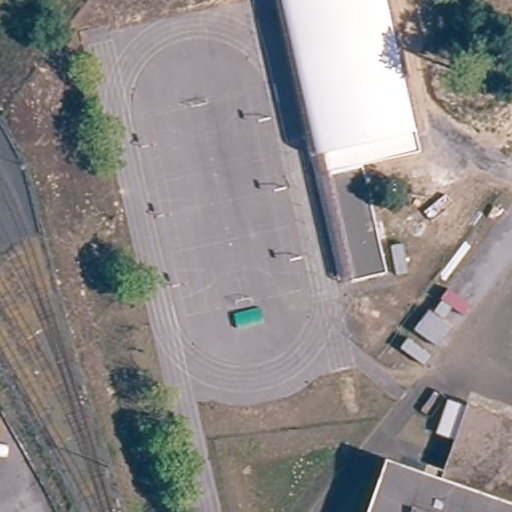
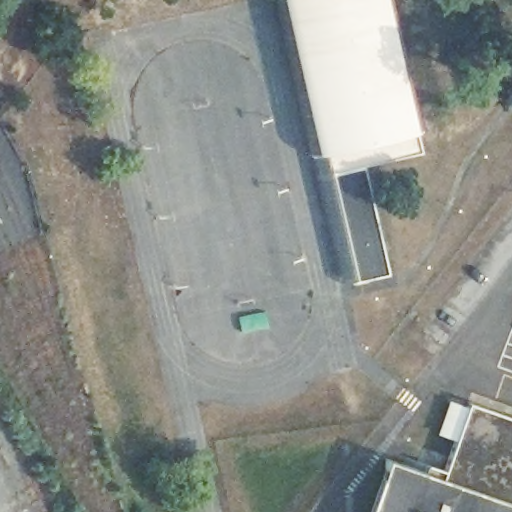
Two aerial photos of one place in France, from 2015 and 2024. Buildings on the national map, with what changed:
unchanged [(351,275),(344,277),(281,0),(386,0),(419,150),(364,163),(326,170),(351,275)]
unchanged [(364,163),(386,271),(352,278),(326,170),(364,163)]
unchanged [(453,326),(439,345),(414,329),(429,310),(453,326)]
unchanged [(410,484),(414,477),(430,482),(453,414),(512,433),(512,512),(359,512),(373,470),(410,484)]

